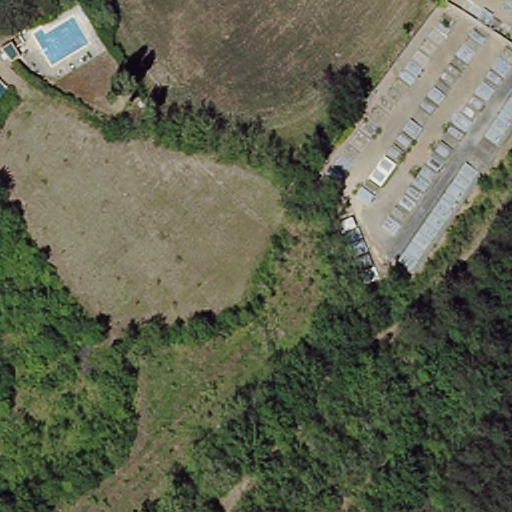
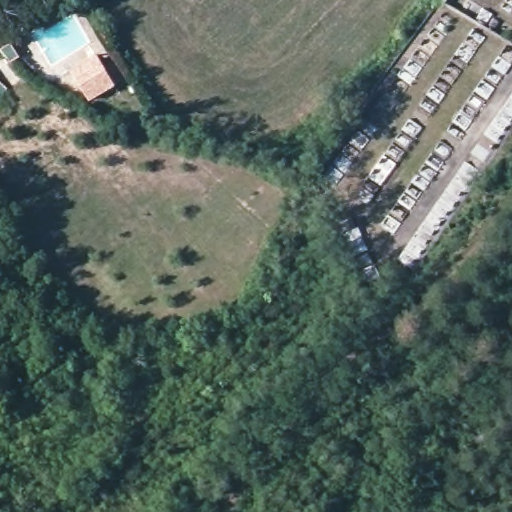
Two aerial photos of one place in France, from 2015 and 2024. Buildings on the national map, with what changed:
unchanged [(7,45),(13,56),(5,62),(0,56),(0,48),(7,45)]
new [(97,54),(116,86),(89,101),(71,70),(97,54)]
new [(8,90),(0,98),(0,83),(8,90)]
unchanged [(357,110),(347,121),(335,109),(345,99),(357,110)]

